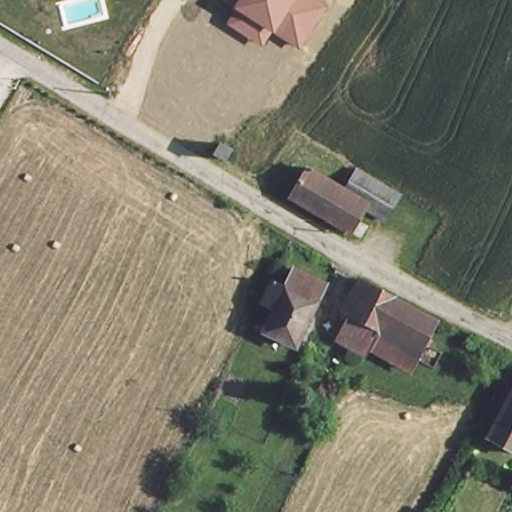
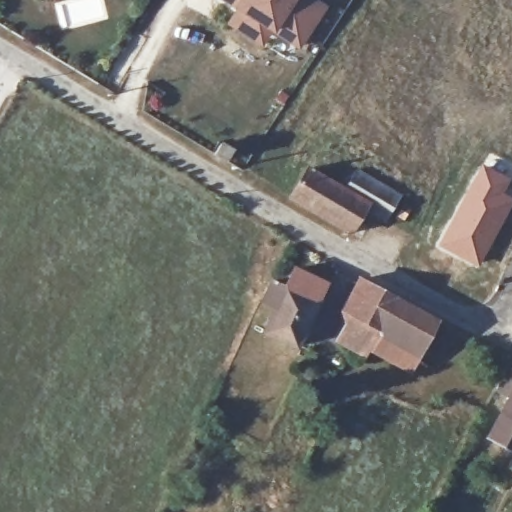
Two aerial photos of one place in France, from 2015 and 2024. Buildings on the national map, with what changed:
unchanged [(300,49),(271,32),(264,46),(225,23),(233,7),(221,0),(316,0),(327,7),(300,49)]
unchanged [(399,195),(384,217),(361,214),(346,236),(291,196),(317,162),(348,184),(360,167),(399,195)]
new [(481,163),(511,179),(503,194),(512,198),(512,203),(478,270),(435,245),(481,163)]
unchanged [(298,345),(270,331),(281,310),(266,303),(279,280),(291,285),(298,271),(326,284),(298,345)]
unchanged [(366,345),(362,352),(337,340),(360,296),(351,291),(358,277),(396,296),(366,345)]
unchanged [(433,315),(411,364),(366,345),(396,296),(433,315)]
unchanged [(489,437),(512,392),(512,393),(512,448),(489,437)]

